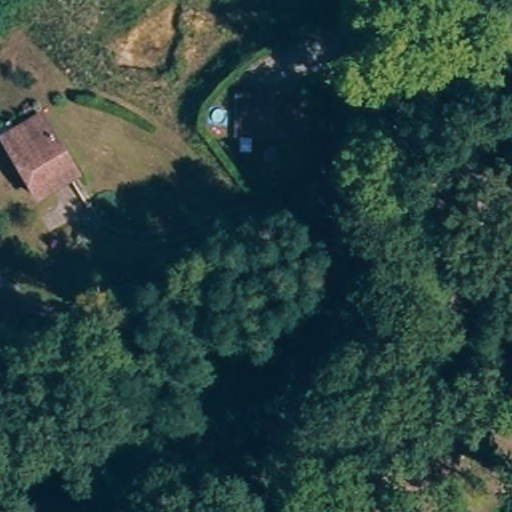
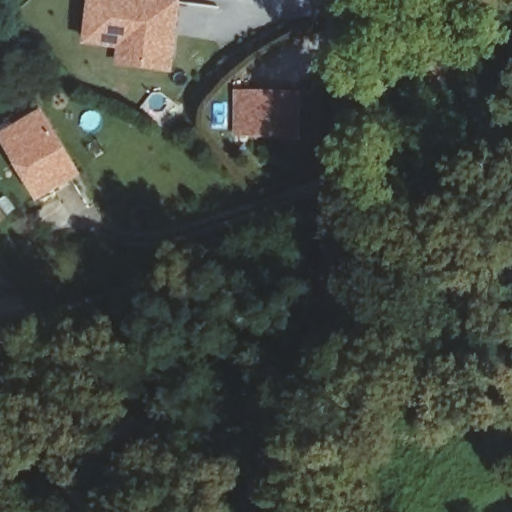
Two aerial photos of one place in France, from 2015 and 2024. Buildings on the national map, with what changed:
new [(78,46),(84,0),(114,0),(170,7),(163,57),(161,75),(111,68),(113,50),(78,46)]
unchanged [(301,95),(302,137),(236,136),(239,91),(301,95)]
unchanged [(43,107),(82,175),(40,204),(1,131),(43,107)]

